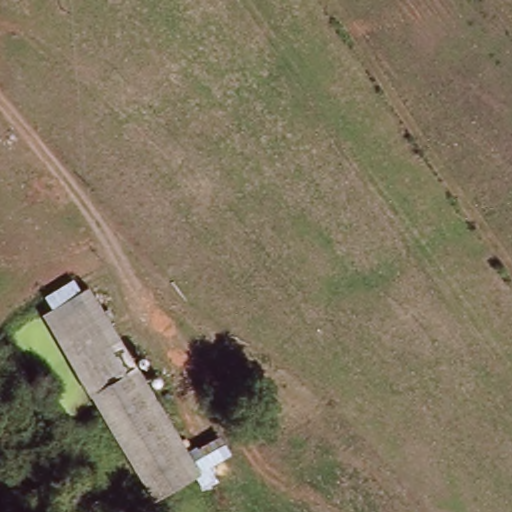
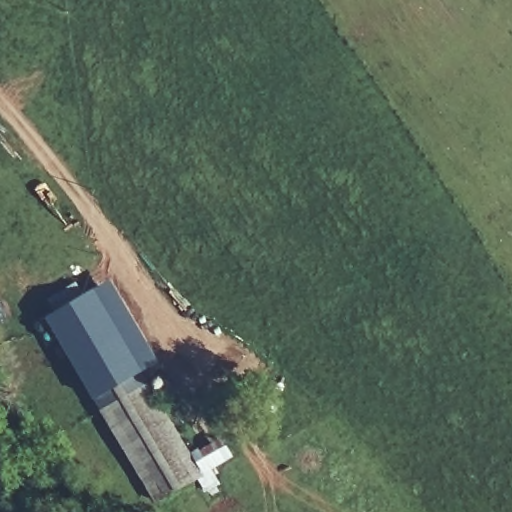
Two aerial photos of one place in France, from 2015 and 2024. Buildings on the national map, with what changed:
unchanged [(208,473),(161,501),(51,318),(97,290),(208,473)]

